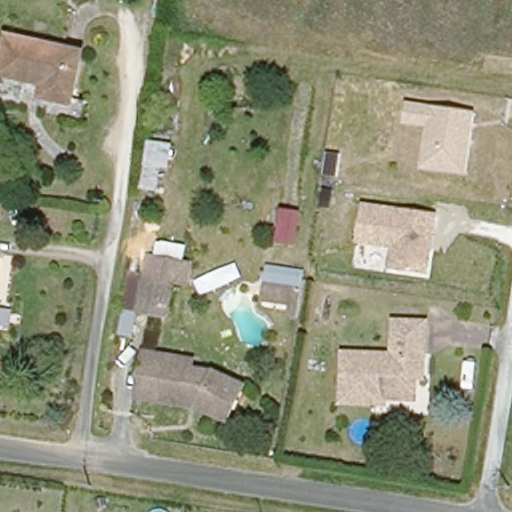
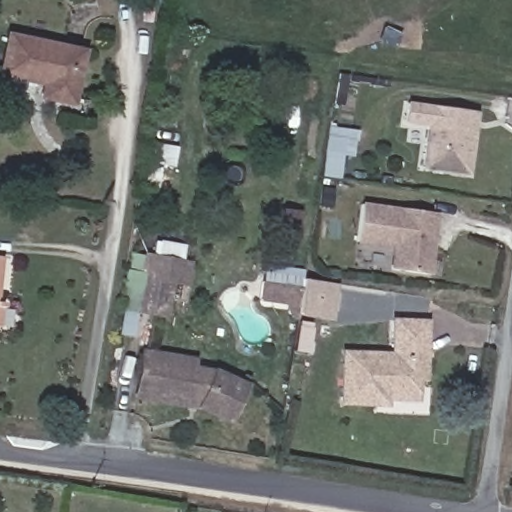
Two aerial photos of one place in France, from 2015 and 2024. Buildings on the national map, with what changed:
unchanged [(11,36),(84,56),(71,107),(41,99),(45,86),(1,74),(11,36)]
unchanged [(405,125),(408,102),(478,111),(470,175),(421,169),(427,127),(405,125)]
unchanged [(162,168),(158,191),(142,188),(146,165),(150,141),(175,145),(171,169),(162,168)]
unchanged [(358,245),(363,201),(439,213),(431,275),(388,270),(390,249),(358,245)]
unchanged [(138,313),(120,310),(125,278),(143,281),(145,268),(147,261),(190,267),(189,275),(186,288),(173,286),(167,319),(138,313)]
unchanged [(266,265),(304,271),(297,321),(291,318),(288,314),(288,306),(262,302),(266,265)]
new [(337,284),(330,320),(298,315),(303,279),(337,284)]
unchanged [(375,403),(342,402),(343,351),(390,354),(393,319),(425,320),(424,356),(423,376),(416,376),(415,394),(385,393),(384,403),(375,403)]
unchanged [(142,348),(192,356),(191,364),(213,367),(244,381),(229,415),(198,402),(200,395),(186,393),(184,398),(135,391),(142,348)]

